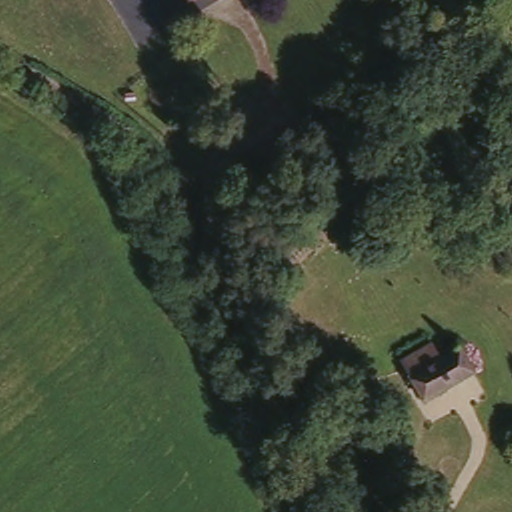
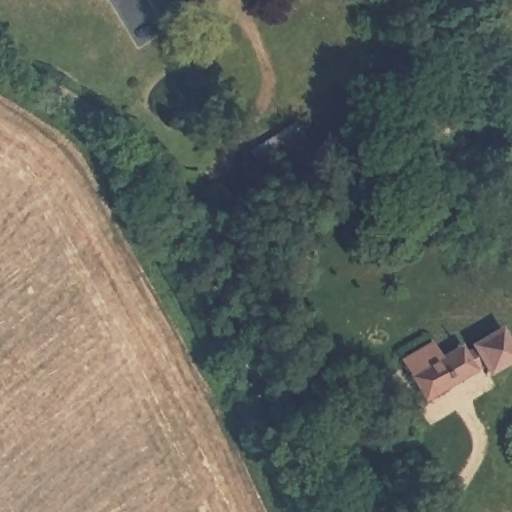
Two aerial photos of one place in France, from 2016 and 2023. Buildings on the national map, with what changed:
unchanged [(200,0),(192,5),(189,0),(200,0)]
unchanged [(255,147),(293,123),(311,155),(273,178),(255,147)]
new [(512,357),(512,359),(488,373),(473,349),(499,331),(512,357)]
unchanged [(429,350),(439,365),(457,353),(474,377),(428,408),(401,370),(429,350)]
unchanged [(321,376),(333,392),(305,415),(294,393),(321,376)]

